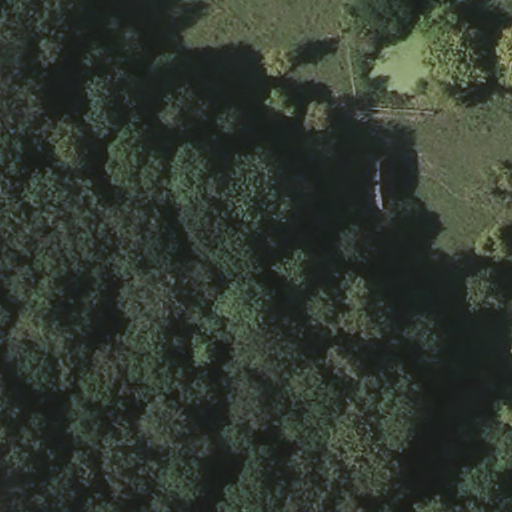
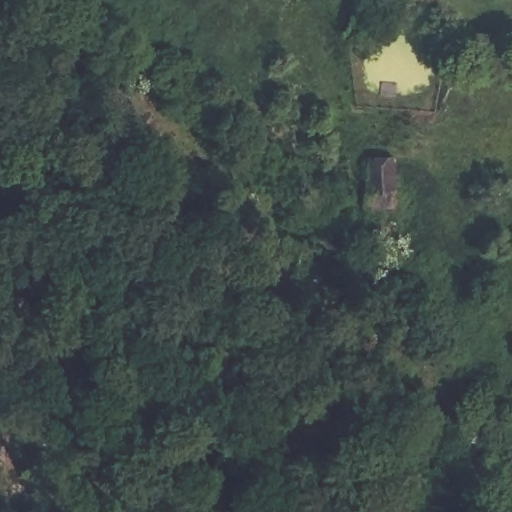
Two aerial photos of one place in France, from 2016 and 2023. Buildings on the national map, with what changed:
unchanged [(395,157),(398,241),(375,242),(372,159),(395,157)]

